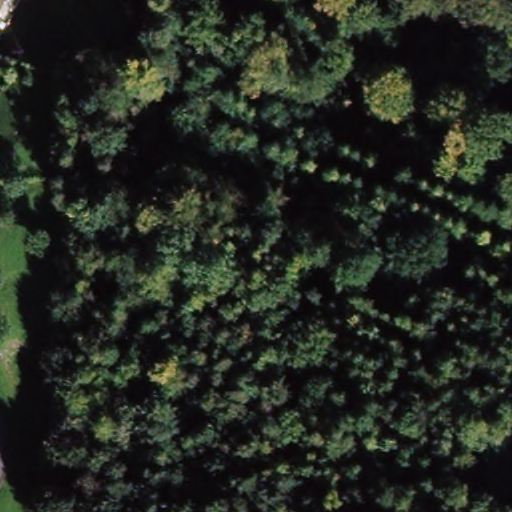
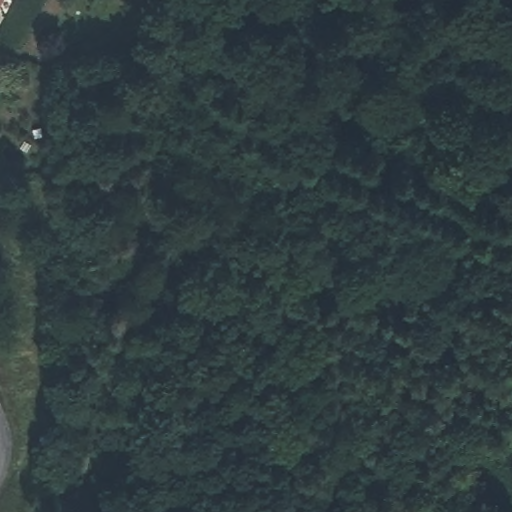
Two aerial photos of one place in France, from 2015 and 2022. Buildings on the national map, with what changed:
unchanged [(0,13),(0,0),(7,0),(0,13)]

